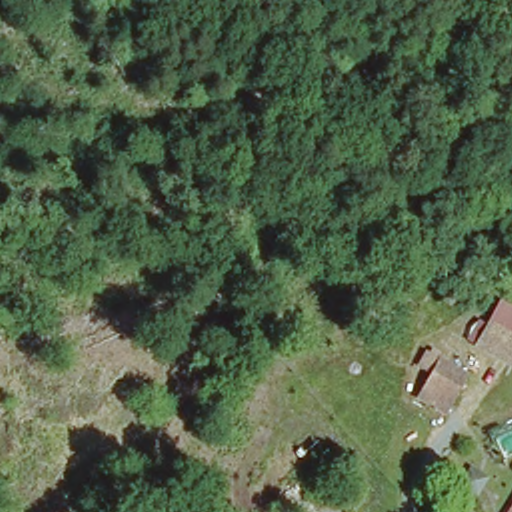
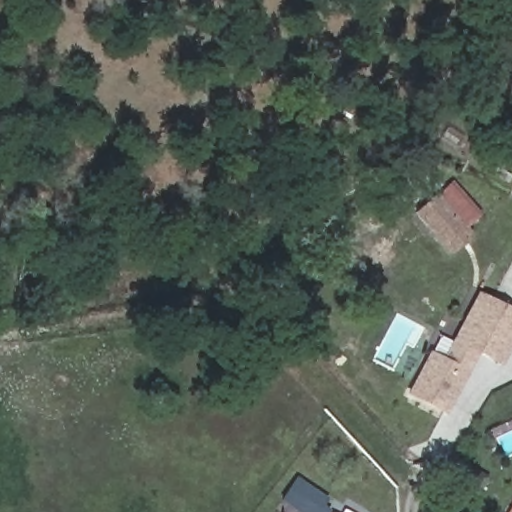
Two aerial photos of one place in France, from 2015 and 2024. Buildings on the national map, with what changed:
new [(466,229),(471,235),(447,256),(412,214),(435,194),(452,180),(482,215),(466,229)]
new [(445,415),(404,396),(427,350),(440,357),(476,291),(512,310),(512,344),(500,367),(477,355),(445,415)]
demolished [(437,359),(467,378),(452,410),(421,391),(437,359)]
new [(327,512),(296,512),(279,499),(296,477),(327,500),(323,506),(329,510),(327,512)]

